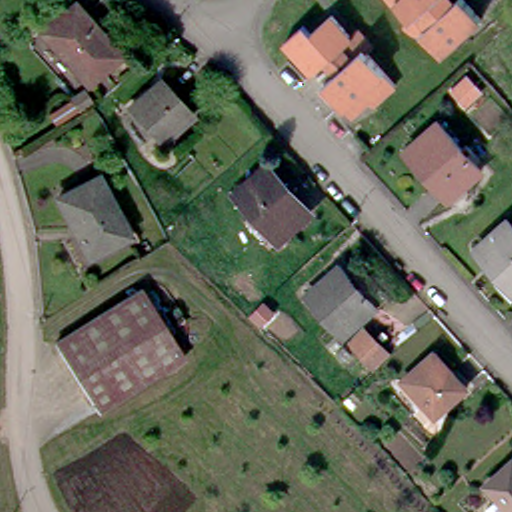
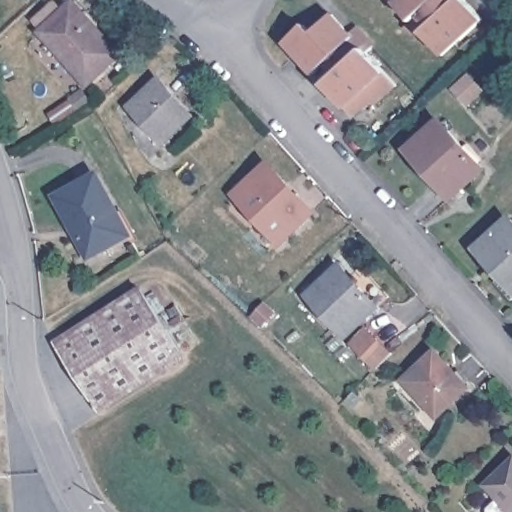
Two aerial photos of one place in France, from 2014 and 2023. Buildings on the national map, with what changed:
unchanged [(79,0),(123,48),(91,80),(43,29),(73,0),(79,0)]
unchanged [(471,0),(484,15),(444,51),(425,29),(423,31),(414,28),(407,22),(413,16),(398,0),(443,0),(448,5),(454,0),(471,0)]
unchanged [(311,74),(283,42),(302,25),(310,33),(331,15),(348,34),(353,30),(358,33),(363,36),(369,47),(364,51),(394,85),(371,106),(364,98),(361,101),(364,105),(349,117),(321,85),(334,74),(324,62),(311,74)]
unchanged [(158,80),(193,114),(166,141),(131,106),(158,80)]
unchanged [(484,170),(453,198),(409,151),(441,121),(484,170)]
unchanged [(271,165),(311,210),(281,236),(241,192),(271,165)]
unchanged [(94,170),(127,230),(85,251),(54,193),(94,170)]
unchanged [(504,276),(479,249),(512,219),(512,295),(499,281),(504,276)]
unchanged [(342,266),(379,306),(346,336),(310,294),(342,266)]
unchanged [(133,284),(176,353),(94,404),(51,336),(133,284)]
unchanged [(432,346),(464,383),(435,410),(403,374),(432,346)]
unchanged [(512,455),(512,512),(484,481),(512,455)]

